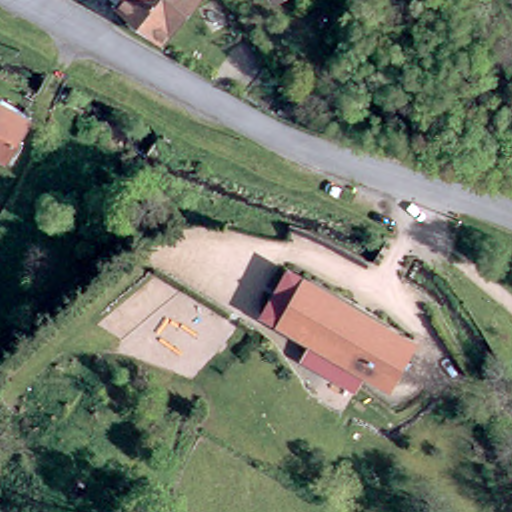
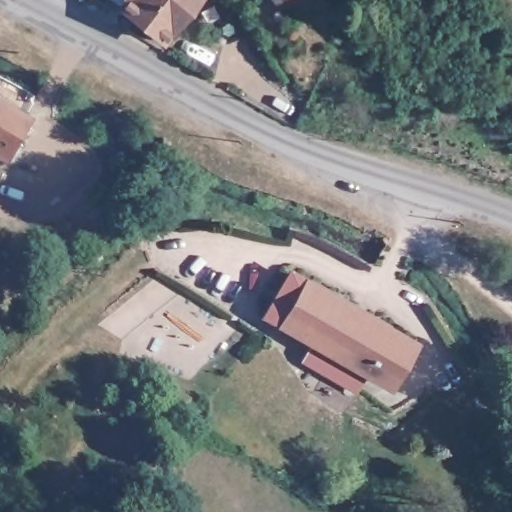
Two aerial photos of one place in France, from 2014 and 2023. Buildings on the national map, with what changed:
unchanged [(122,9),(106,0),(127,0),(123,5),(122,9)]
unchanged [(123,5),(127,0),(189,0),(165,34),(123,5)]
unchanged [(23,117),(0,158),(0,104),(23,117)]
unchanged [(363,369),(353,385),(300,355),(310,338),(265,312),(289,270),(408,339),(384,381),(363,369)]

